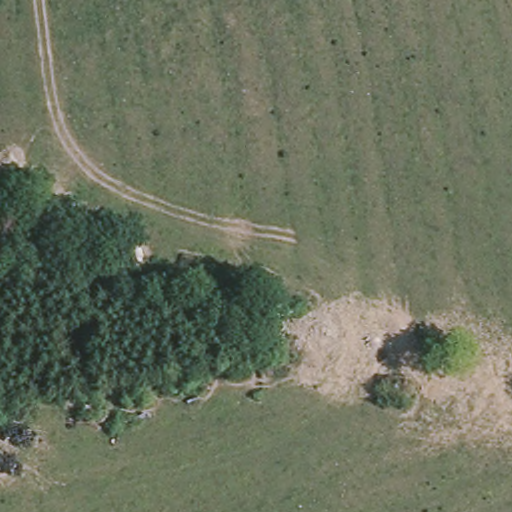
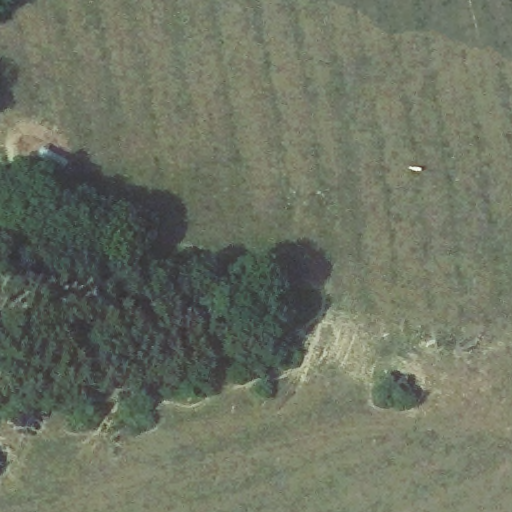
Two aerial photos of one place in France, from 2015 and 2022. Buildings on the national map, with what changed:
unchanged [(105,318),(106,350),(72,351),(71,315),(105,318)]

